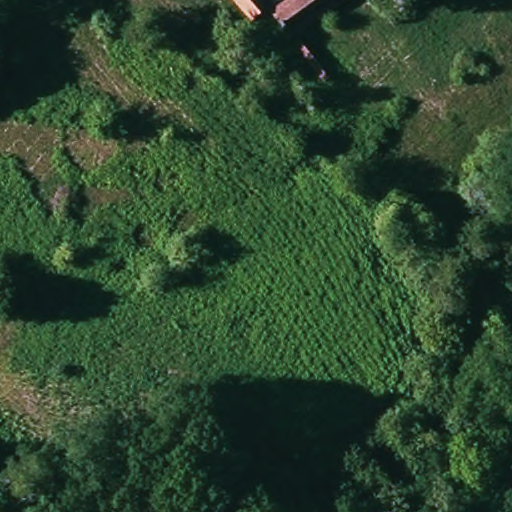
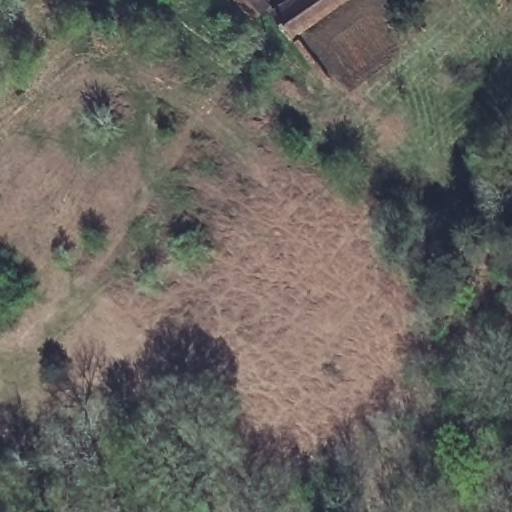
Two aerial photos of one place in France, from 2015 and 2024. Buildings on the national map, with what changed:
unchanged [(275,9),(257,24),(236,0),(267,0),(275,9)]
unchanged [(299,24),(283,0),(335,0),(299,24)]
unchanged [(299,30),(329,71),(322,76),(294,36),(299,30)]

